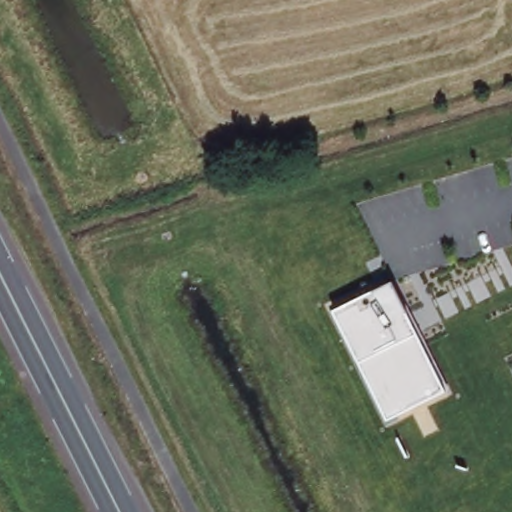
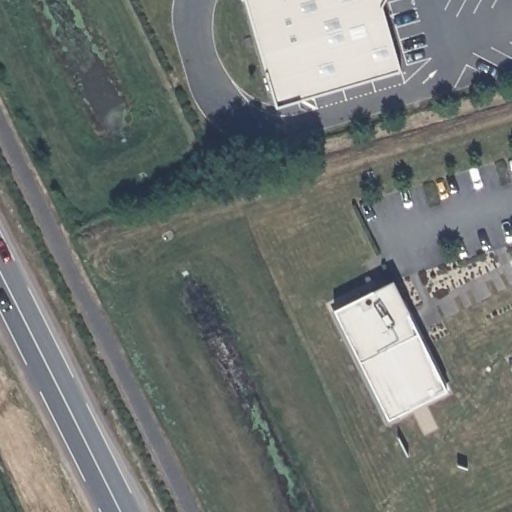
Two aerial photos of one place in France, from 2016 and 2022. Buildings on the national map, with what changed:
new [(400,71),(275,107),(244,0),(380,0),(400,71)]
unchanged [(445,390),(386,419),(334,311),(393,282),(445,390)]

